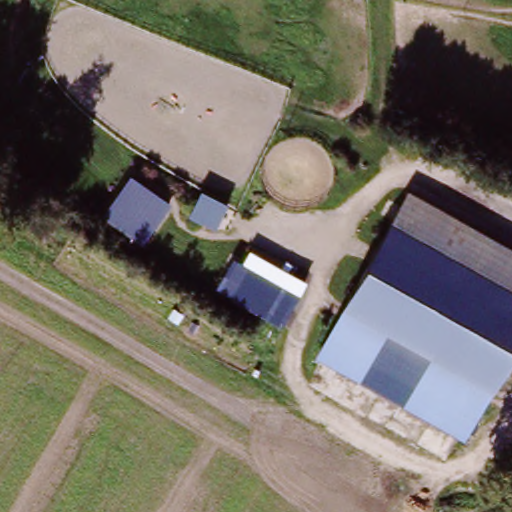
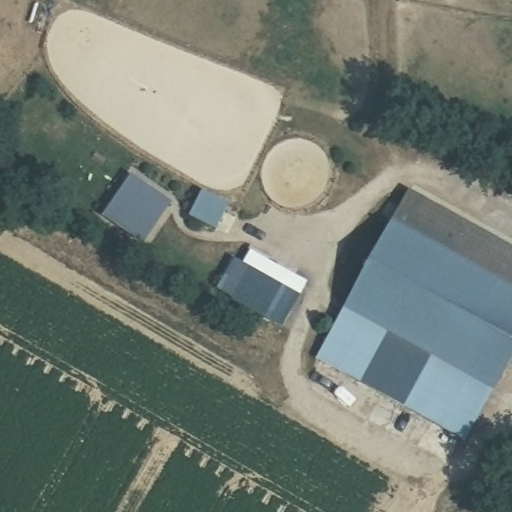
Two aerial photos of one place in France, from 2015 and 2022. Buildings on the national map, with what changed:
unchanged [(102,220),(127,179),(166,204),(139,239),(102,220)]
unchanged [(229,204),(215,231),(187,216),(200,194),(229,204)]
unchanged [(512,250),(512,355),(497,383),(351,302),(395,224),(410,195),(512,250)]
unchanged [(295,271),(277,306),(236,282),(255,249),(295,271)]
unchanged [(468,433),(323,353),(351,302),(497,383),(468,433)]

